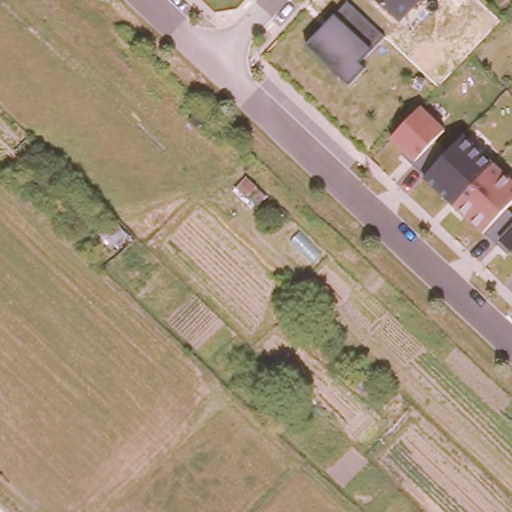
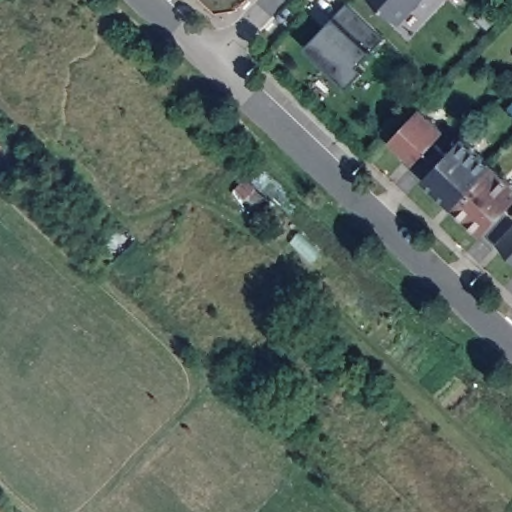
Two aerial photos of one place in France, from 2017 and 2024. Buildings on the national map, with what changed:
unchanged [(400,25),(373,0),(423,0),(400,25)]
unchanged [(383,35),(374,50),(361,64),(365,69),(351,85),(311,45),(336,16),(346,4),(383,35)]
unchanged [(500,243),(499,246),(424,177),(412,165),(415,161),(392,140),(420,107),(444,131),(434,140),(447,152),(462,136),(512,183),(512,202),(505,209),(512,216),(512,254),(500,243)]

